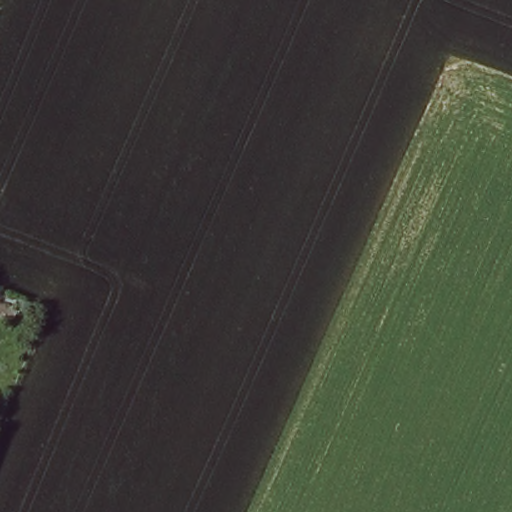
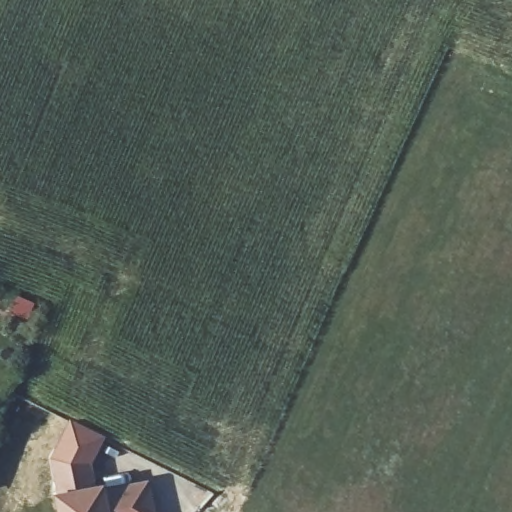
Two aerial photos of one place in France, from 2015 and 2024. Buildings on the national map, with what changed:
new [(90,447),(98,482),(105,481),(106,487),(149,479),(154,512),(59,512),(56,491),(51,455),(90,447)]

